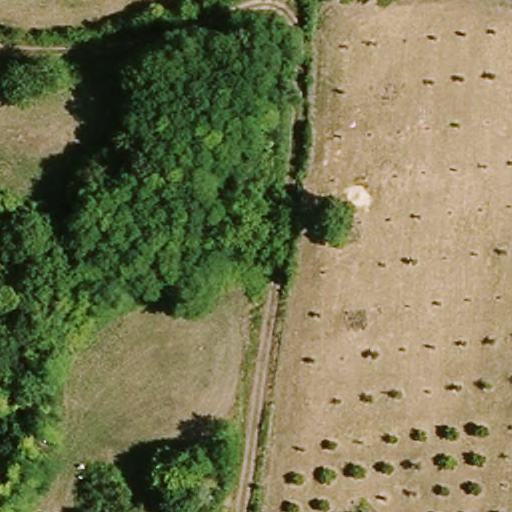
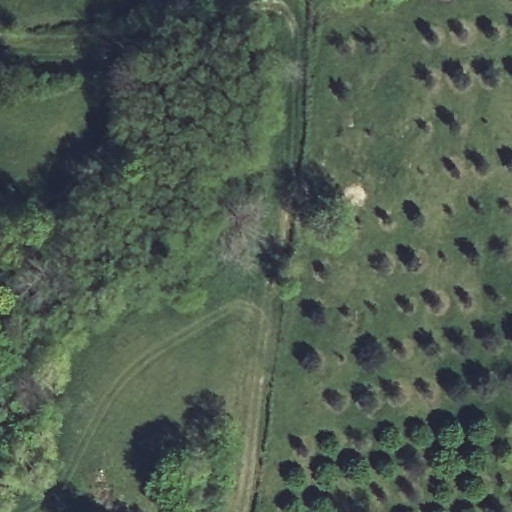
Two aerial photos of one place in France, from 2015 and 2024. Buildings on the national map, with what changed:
[]

